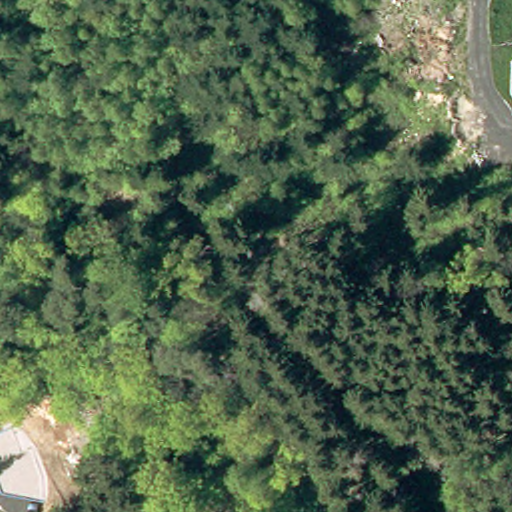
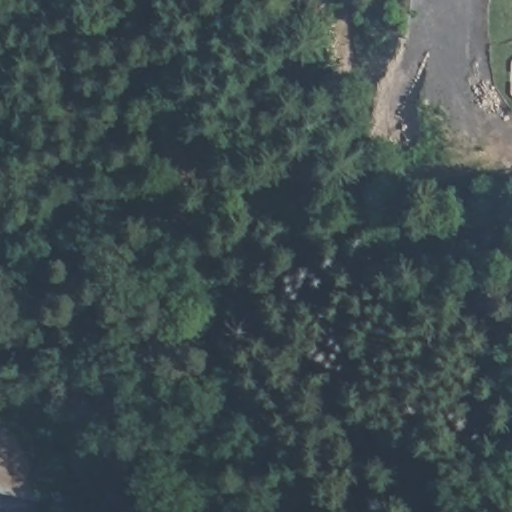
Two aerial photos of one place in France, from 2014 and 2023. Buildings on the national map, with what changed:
unchanged [(13,428),(22,451),(33,447),(43,478),(44,501),(3,491),(0,482),(0,433),(13,428)]

